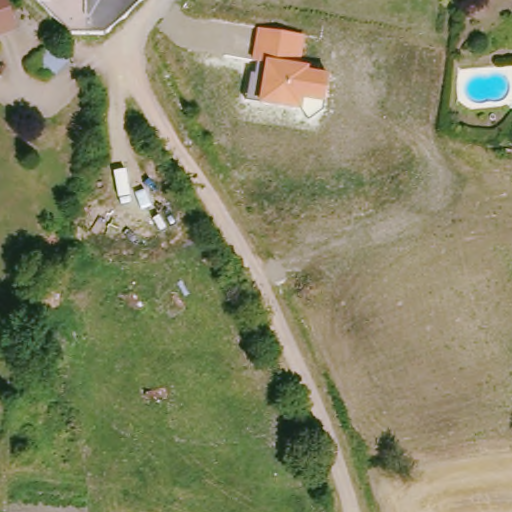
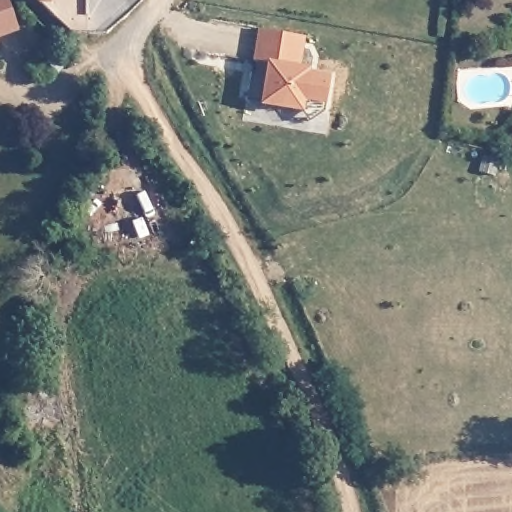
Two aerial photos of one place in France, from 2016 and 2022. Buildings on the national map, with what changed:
unchanged [(7,0),(16,30),(0,37),(0,0),(7,0)]
unchanged [(304,36),(300,65),(309,67),(309,72),(329,74),(324,104),(323,111),(309,120),(301,110),(259,103),(246,100),(251,74),(255,74),(258,61),(253,60),(258,28),(304,36)]
unchanged [(69,58),(45,81),(30,66),(54,43),(69,58)]

